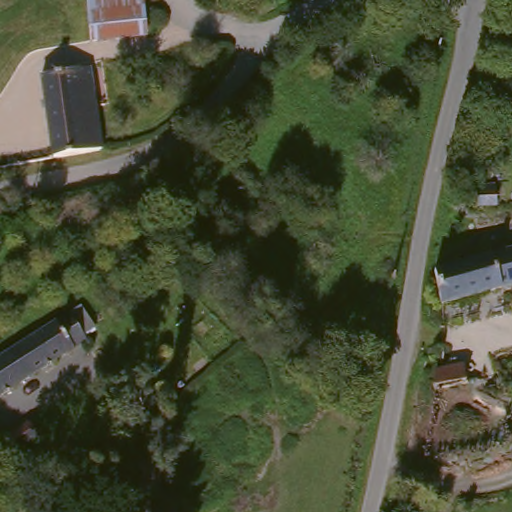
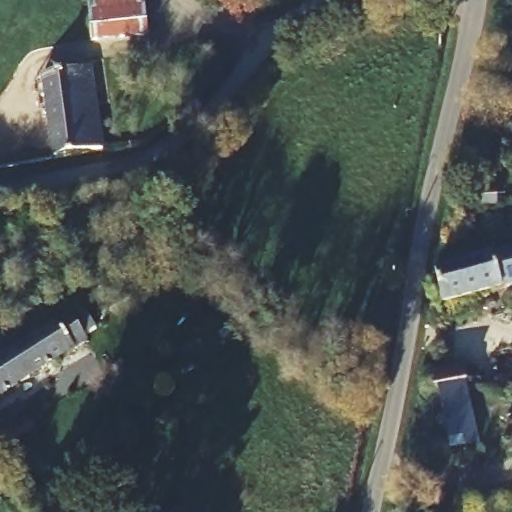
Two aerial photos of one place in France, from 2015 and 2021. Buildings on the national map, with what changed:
unchanged [(144,0),(145,8),(148,36),(91,41),(89,13),(88,0),(144,0)]
unchanged [(46,75),(94,69),(105,146),(54,155),(46,75)]
unchanged [(512,249),(512,286),(439,306),(434,271),(446,267),(512,249)]
unchanged [(83,312),(99,331),(86,341),(89,347),(0,405),(0,367),(83,312)]
new [(461,384),(458,364),(464,363),(479,447),(450,453),(439,389),(461,384)]
unchanged [(458,364),(461,384),(435,390),(432,370),(458,364)]
unchanged [(17,451),(6,437),(28,422),(39,435),(17,451)]

